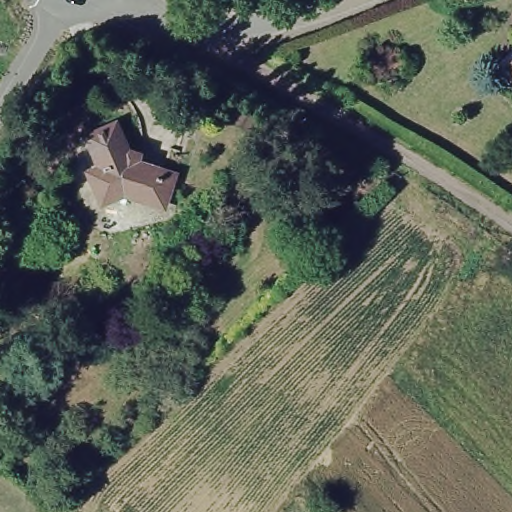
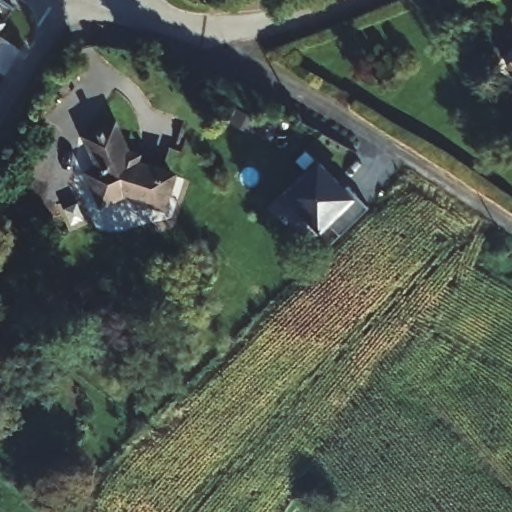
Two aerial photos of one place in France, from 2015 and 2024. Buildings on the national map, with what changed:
new [(1,0),(13,9),(0,31),(0,0),(1,0)]
unchanged [(117,118),(129,146),(142,151),(141,154),(166,165),(164,169),(174,173),(163,204),(124,187),(103,196),(90,168),(93,166),(93,164),(102,159),(88,129),(117,118)]
new [(357,195),(369,205),(341,234),(330,223),(321,230),(285,194),(321,159),(357,195)]

